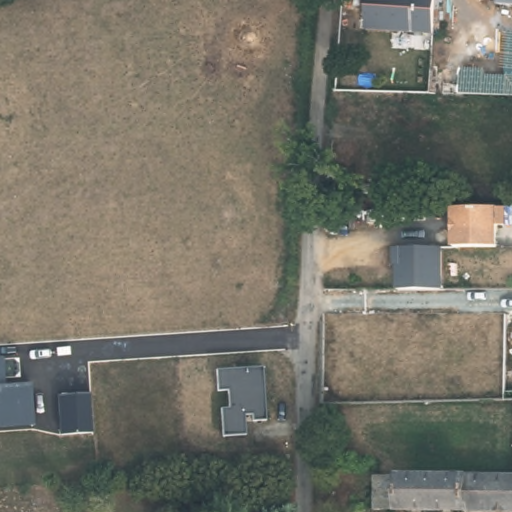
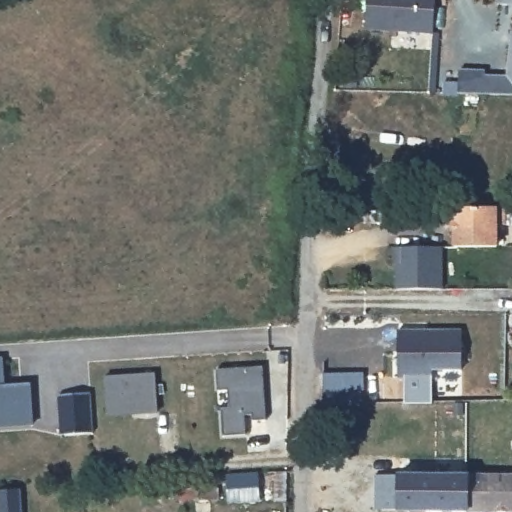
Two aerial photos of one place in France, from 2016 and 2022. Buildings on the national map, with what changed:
unchanged [(365,29),(366,0),(434,0),(430,33),(365,29)]
demolished [(512,12),(512,41),(509,41),(512,12)]
unchanged [(459,67),(483,68),(485,75),(505,76),(511,31),(512,31),(512,94),(458,92),(459,67)]
unchanged [(455,219),(452,219),(452,204),(504,204),(504,221),(497,221),(496,242),(455,242),(455,219)]
unchanged [(397,261),(395,261),(395,246),(435,247),(441,247),(441,286),(397,286),(397,261)]
new [(398,331),(461,331),(461,369),(432,370),(432,378),(398,378),(398,331)]
unchanged [(0,427),(0,357),(1,357),(3,383),(28,383),(32,426),(0,427)]
unchanged [(266,420),(253,420),(251,413),(244,414),(244,434),(222,434),(221,407),(227,407),(226,389),(216,390),(216,368),(261,367),(266,420)]
new [(155,372),(157,411),(108,415),(105,376),(155,372)]
unchanged [(91,431),(60,432),(58,396),(91,394),(91,431)]
unchanged [(373,470),(512,470),(512,506),(373,504),(373,470)]
unchanged [(203,486),(203,497),(180,497),(180,486),(203,486)]
new [(21,488),(23,512),(0,512),(0,490),(21,488)]
unchanged [(321,507),(321,501),(321,493),(329,493),(329,507),(321,507)]

